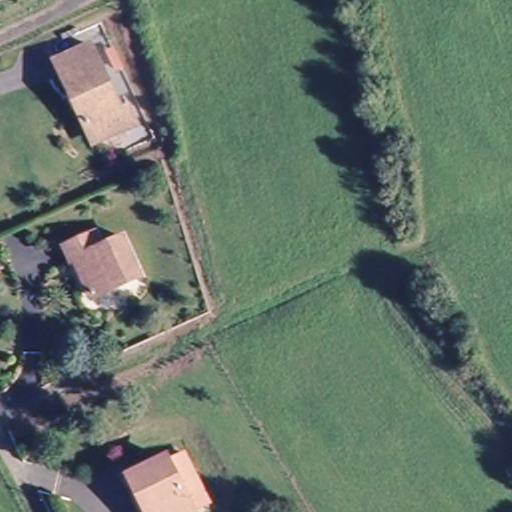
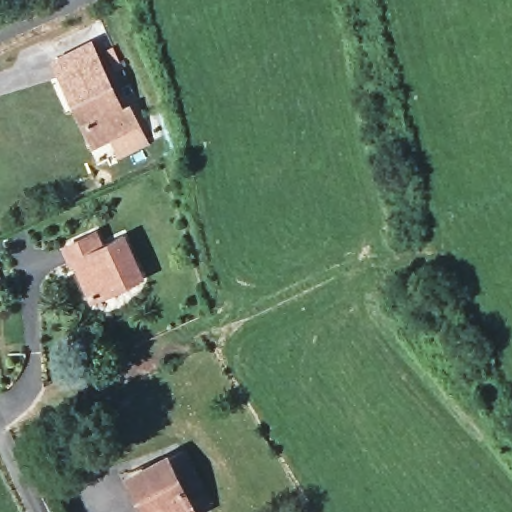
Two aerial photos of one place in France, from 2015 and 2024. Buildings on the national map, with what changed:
unchanged [(87,127),(56,60),(90,44),(121,110),(128,107),(135,123),(111,135),(94,142),(87,127)]
unchanged [(140,275),(92,297),(75,260),(70,262),(63,247),(96,232),(102,246),(123,237),(140,275)]
unchanged [(208,502),(192,510),(167,460),(183,452),(208,502)]
unchanged [(193,512),(147,512),(129,477),(166,459),(167,460),(192,510),(193,512)]

